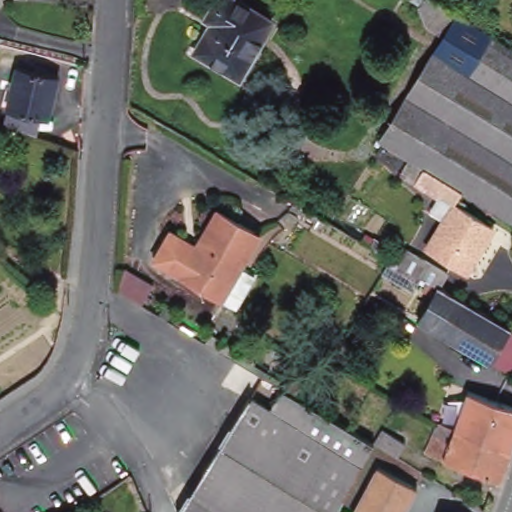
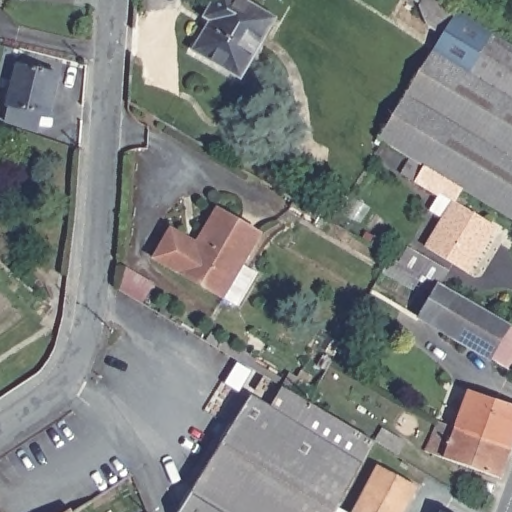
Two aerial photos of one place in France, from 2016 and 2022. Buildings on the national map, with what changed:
unchanged [(219,21),(210,16),(220,0),(242,0),(275,20),(243,76),(202,51),(219,21)]
unchanged [(432,28),(421,9),(422,6),(414,0),(432,0),(512,48),(512,101),(436,55),(447,38),(432,28)]
unchanged [(405,106),(435,56),(436,55),(512,101),(512,220),(465,191),(443,178),(427,168),(384,141),(405,106)]
unchanged [(19,69),(60,77),(53,118),(44,116),(40,136),(6,125),(10,108),(19,69)]
unchanged [(489,238),(467,273),(430,251),(449,218),(433,208),(439,199),(417,185),(427,168),(443,178),(465,191),(458,204),(490,223),(496,227),(489,238)]
unchanged [(198,247),(220,210),(263,235),(224,300),(180,274),(156,260),(174,231),(183,237),(198,247)]
unchanged [(409,249),(431,263),(424,275),(401,262),(409,249)]
unchanged [(494,360),(423,318),(427,309),(420,306),(424,299),(431,303),(436,294),(427,289),(431,280),(512,327),(512,353),(505,366),(494,360)]
unchanged [(272,411),(285,389),(309,403),(314,407),(376,444),(367,462),(346,502),(340,512),(221,512),(193,495),(203,478),(250,398),(272,411)]
unchanged [(472,392),(512,407),(512,450),(458,430),(472,392)]
unchanged [(458,430),(512,450),(512,456),(503,482),(428,454),(442,425),(458,430)]
unchanged [(422,451),(417,461),(397,450),(402,439),(422,451)]
unchanged [(421,490),(410,512),(358,512),(381,469),(421,490)]
unchanged [(193,495),(221,512),(183,512),(193,495)]
unchanged [(448,512),(443,512),(444,510),(448,512)]

